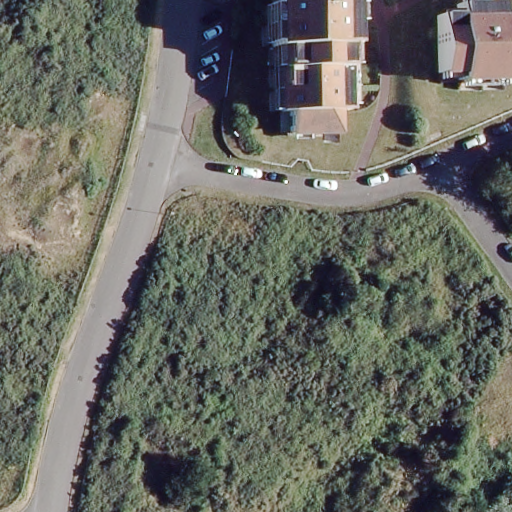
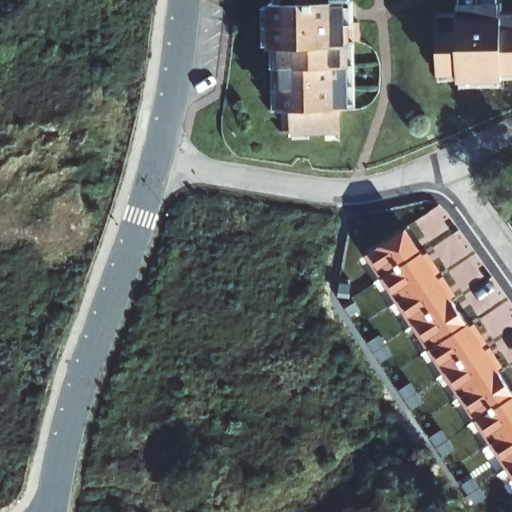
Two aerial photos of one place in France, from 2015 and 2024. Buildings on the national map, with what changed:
unchanged [(327,5),(342,5),(343,26),(354,26),(354,47),(342,46),(342,110),(332,110),(331,133),(283,133),(283,111),(274,111),(276,50),(268,50),(269,6),(281,6),(281,0),(327,0),(327,5)]
unchanged [(498,83),(452,82),(453,75),(433,74),(435,15),(454,16),(455,5),(501,6),(500,18),(512,18),(512,76),(499,75),(498,83)]
new [(406,228),(512,388),(512,480),(364,256),(406,228)]

